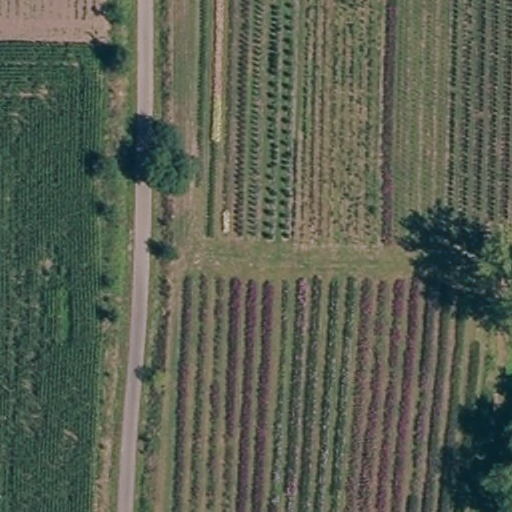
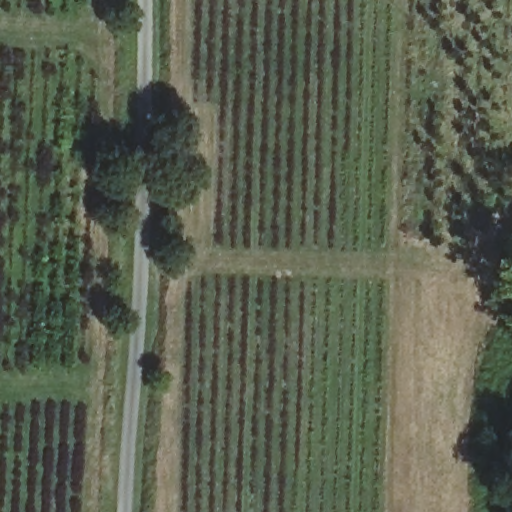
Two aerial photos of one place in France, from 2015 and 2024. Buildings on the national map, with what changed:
[]

